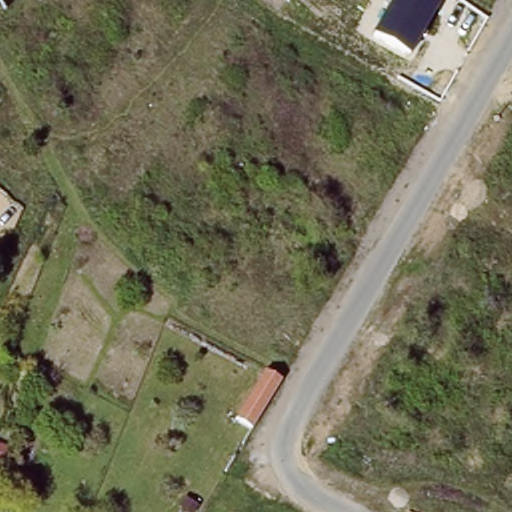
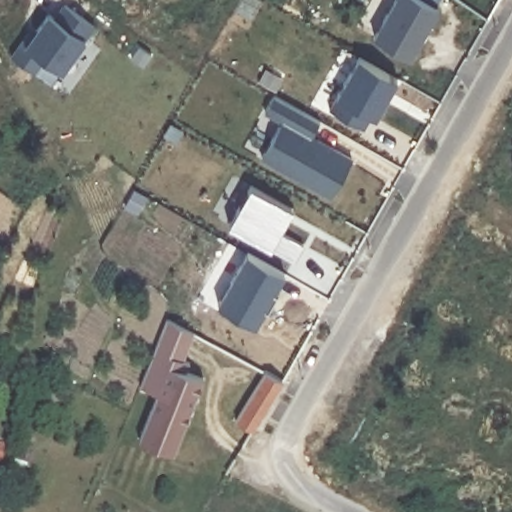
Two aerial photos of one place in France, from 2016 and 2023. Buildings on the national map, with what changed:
unchanged [(393,0),(440,0),(410,56),(373,35),(393,0)]
new [(85,39),(62,71),(44,59),(34,71),(11,55),(29,25),(34,28),(46,10),(51,13),(62,1),(94,25),(85,39)]
new [(360,56),(399,78),(377,117),(373,115),(366,128),(331,109),(360,56)]
new [(312,134),(353,156),(331,197),(261,156),(281,121),(262,111),(272,93),(319,120),(312,134)]
new [(279,230),(303,244),(294,259),(269,245),(230,223),(251,186),(292,209),(279,230)]
new [(256,322),(218,301),(247,251),(284,272),(256,322)]
new [(184,358),(190,361),(185,370),(204,377),(173,452),(138,439),(157,393),(139,386),(166,317),(193,331),(184,358)]
new [(266,371),(283,380),(253,430),(236,419),(266,371)]
unchanged [(36,447),(23,486),(9,481),(21,442),(36,447)]
unchanged [(9,450),(5,465),(0,463),(0,446),(9,450)]

